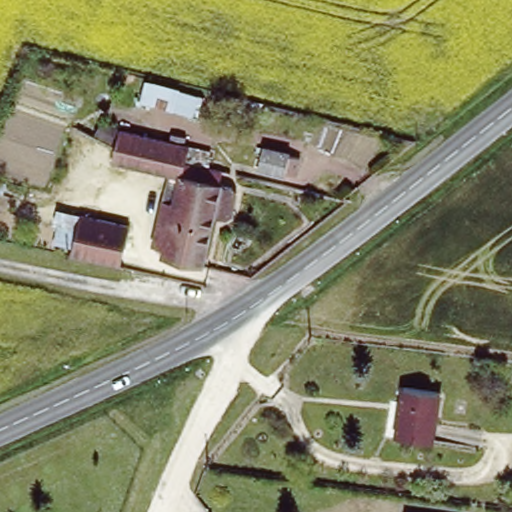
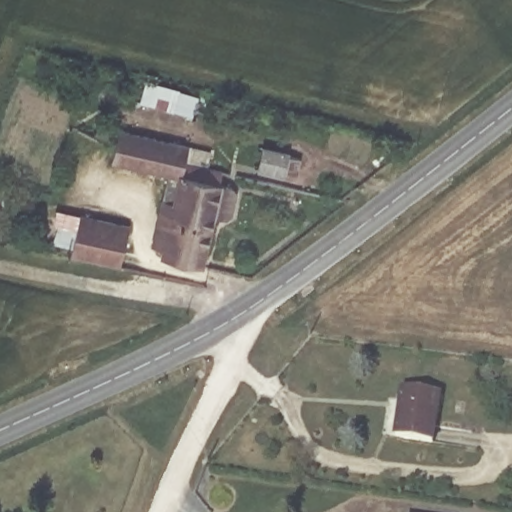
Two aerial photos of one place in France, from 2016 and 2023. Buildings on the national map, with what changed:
unchanged [(201,89),(198,109),(143,96),(147,75),(201,89)]
unchanged [(264,141),(289,147),(284,166),(259,161),(264,141)]
unchanged [(164,201),(168,185),(181,188),(183,175),(115,159),(118,144),(171,156),(187,160),(191,145),(211,150),(208,165),(223,169),(221,179),(224,180),(205,263),(166,254),(168,248),(155,245),(164,201)]
unchanged [(70,249),(74,231),(93,235),(98,213),(129,220),(120,260),(70,249)]
unchanged [(439,440),(403,435),(409,387),(446,392),(439,440)]

